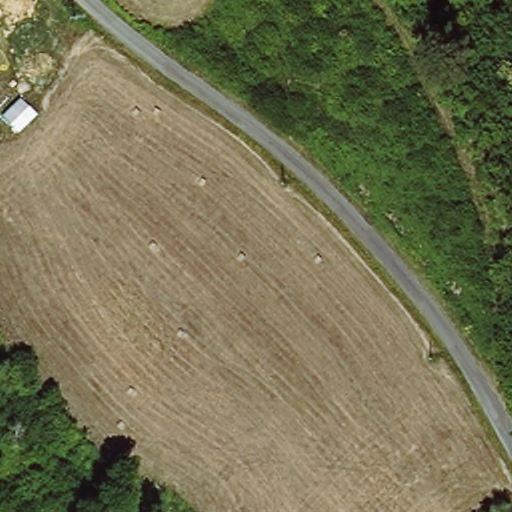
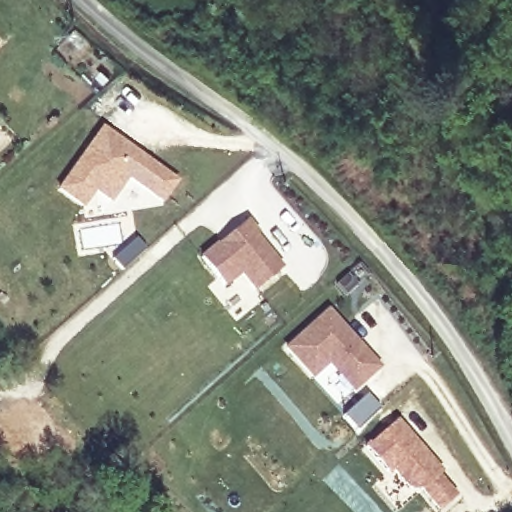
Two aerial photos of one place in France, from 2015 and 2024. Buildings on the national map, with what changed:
new [(120,136),(127,142),(180,178),(166,197),(131,174),(115,198),(98,188),(87,204),(63,187),(105,126),(120,136)]
new [(247,219),(259,232),(256,234),(283,266),(258,287),(243,269),(226,283),(203,255),(247,219)]
new [(331,312),(382,367),(357,390),(332,362),(316,377),(290,349),(331,312)]
new [(398,422),(445,473),(441,477),(459,497),(443,511),(425,490),(413,489),(395,469),(390,474),(368,448),(398,422)]

